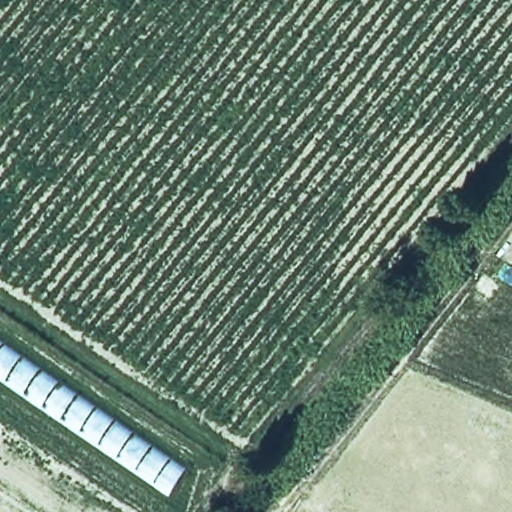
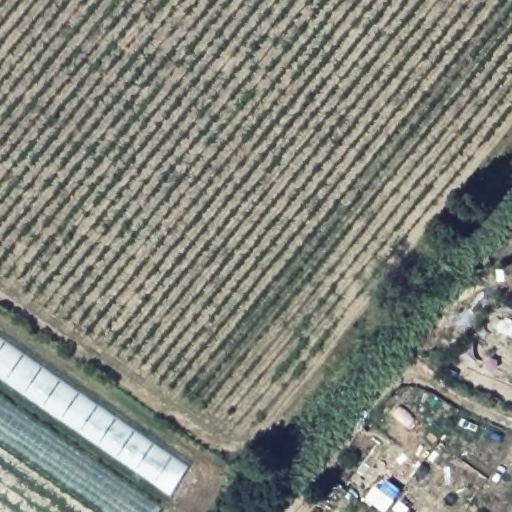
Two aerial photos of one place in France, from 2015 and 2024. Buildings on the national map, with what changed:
unchanged [(0,380),(0,343),(188,469),(169,496),(0,380)]

